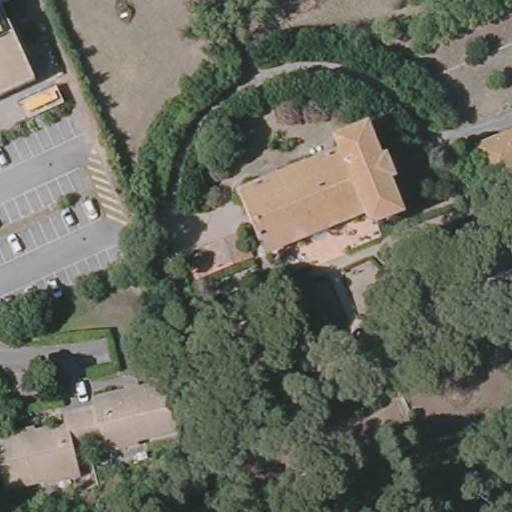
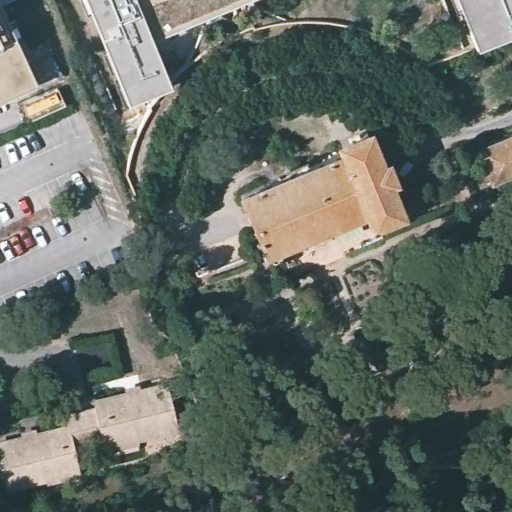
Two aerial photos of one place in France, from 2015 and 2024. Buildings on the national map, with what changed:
new [(171,83),(128,99),(88,0),(224,0),(150,31),(171,83)]
new [(458,0),(512,0),(512,31),(477,45),(458,0)]
unchanged [(0,100),(0,15),(33,85),(0,100)]
unchanged [(269,250),(245,189),(349,146),(343,135),(367,125),(400,203),(386,209),(374,212),(372,209),(269,250)]
unchanged [(474,146),(512,130),(512,168),(487,179),(474,146)]
unchanged [(236,242),(245,262),(210,276),(202,256),(236,242)]
unchanged [(107,458),(106,451),(105,448),(90,451),(84,419),(100,415),(98,409),(131,402),(145,399),(169,395),(178,438),(139,447),(140,451),(107,458)]
unchanged [(50,491),(49,488),(8,497),(0,462),(0,447),(24,442),(39,439),(70,433),(67,423),(84,419),(90,451),(75,454),(80,476),(82,484),(50,491)]

